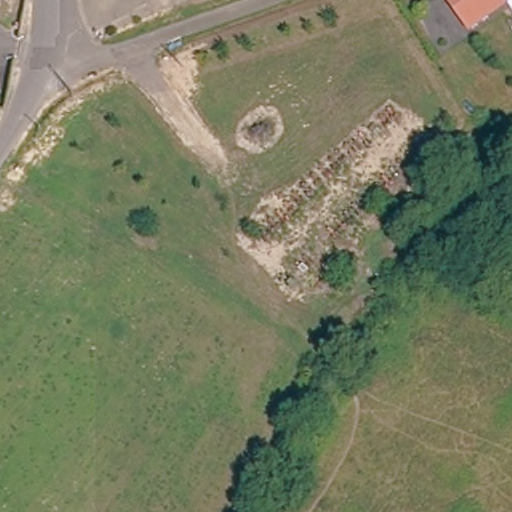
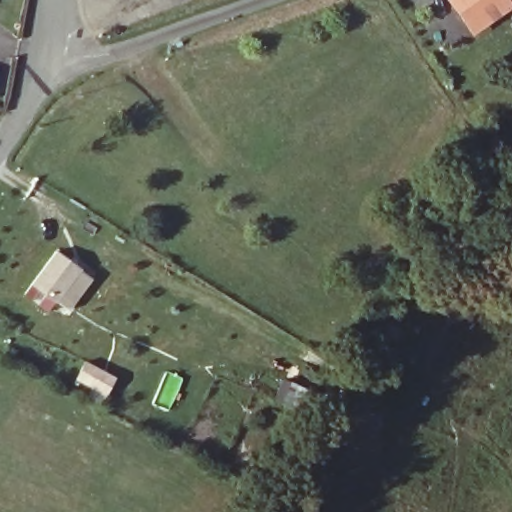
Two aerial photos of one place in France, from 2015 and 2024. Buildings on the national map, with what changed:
unchanged [(471,29),(450,0),(512,0),(512,7),(511,8),(505,1),(471,29)]
new [(69,309),(57,300),(32,281),(58,248),(83,267),(95,276),(69,309)]

